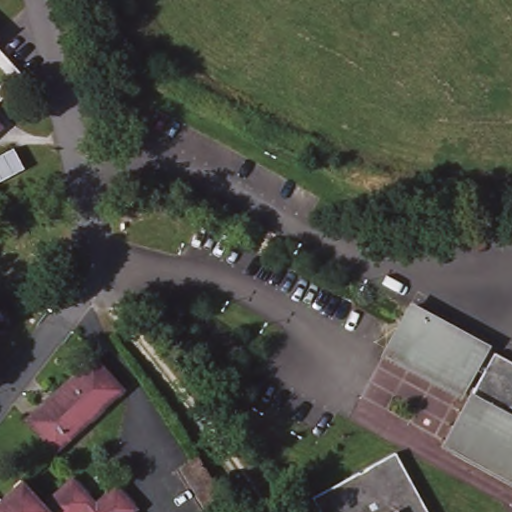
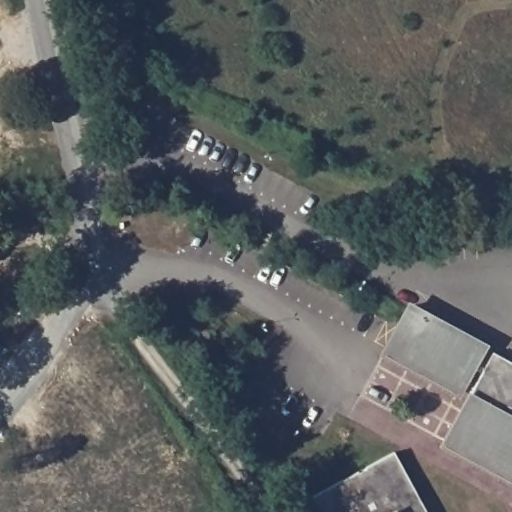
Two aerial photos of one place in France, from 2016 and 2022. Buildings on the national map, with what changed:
unchanged [(2,130),(0,132),(0,128),(2,130)]
unchanged [(469,398),(385,350),(414,300),(512,355),(512,482),(440,443),(469,398)]
demolished [(88,357),(116,389),(49,451),(19,419),(88,357)]
unchanged [(399,447),(433,512),(324,512),(314,493),(399,447)]
demolished [(36,503),(66,476),(90,503),(109,485),(130,508),(126,512),(81,512),(81,511),(80,512),(45,512),(0,512),(0,497),(16,482),(36,503)]

